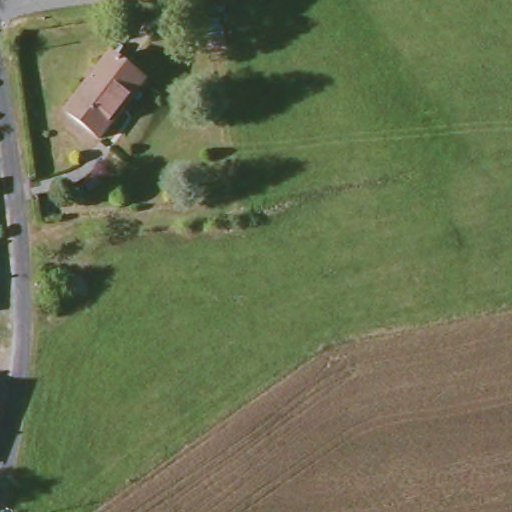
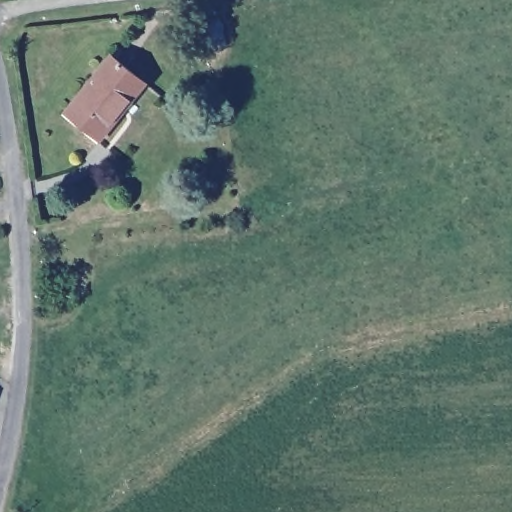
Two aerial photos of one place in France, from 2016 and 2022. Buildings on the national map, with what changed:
unchanged [(149,87),(102,140),(71,112),(117,59),(149,87)]

